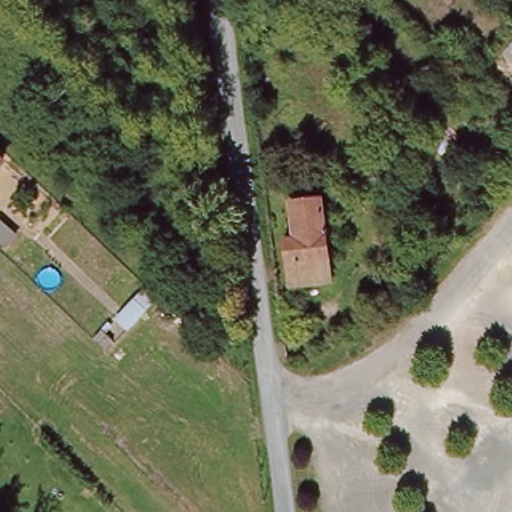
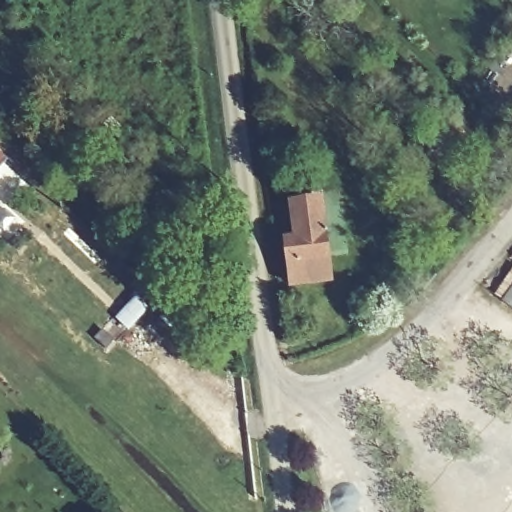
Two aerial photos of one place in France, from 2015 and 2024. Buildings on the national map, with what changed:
unchanged [(6,169),(0,175),(0,162),(6,169)]
unchanged [(292,283),(290,259),(287,235),(295,235),(293,199),(319,195),(322,200),(325,231),(328,255),(330,279),(292,283)]
unchanged [(0,255),(10,244),(26,258),(15,270),(0,255)]
unchanged [(115,355),(125,365),(119,372),(109,362),(115,355)]

